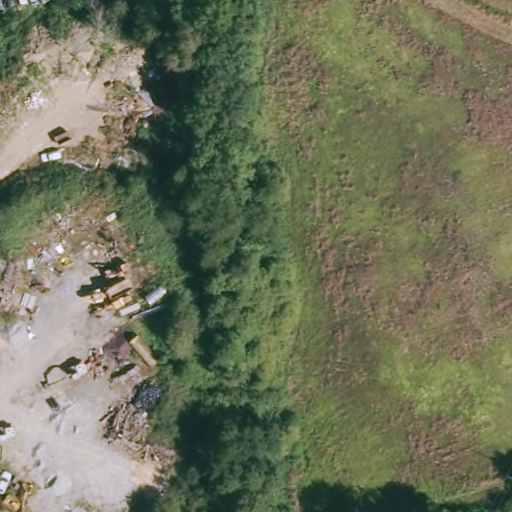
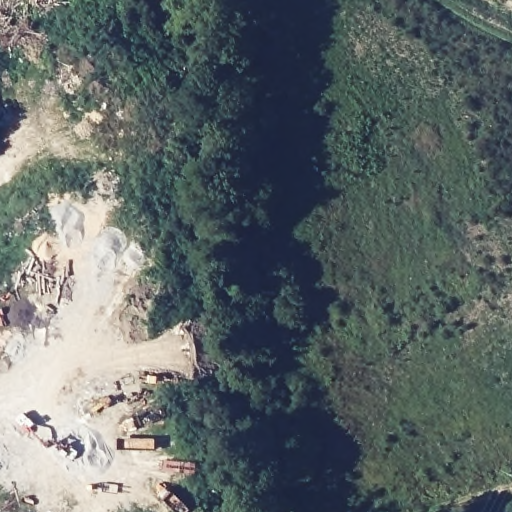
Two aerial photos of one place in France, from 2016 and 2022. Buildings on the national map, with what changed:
[]

